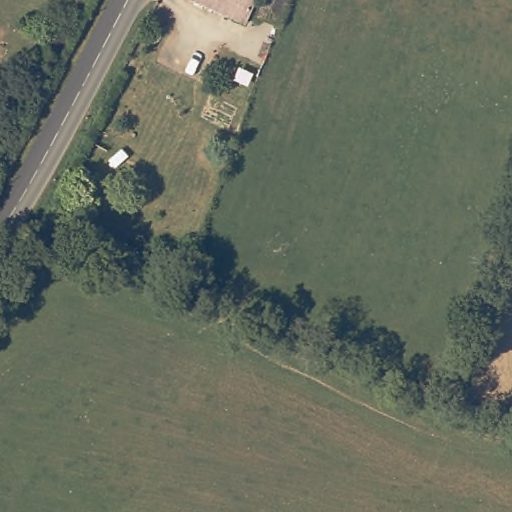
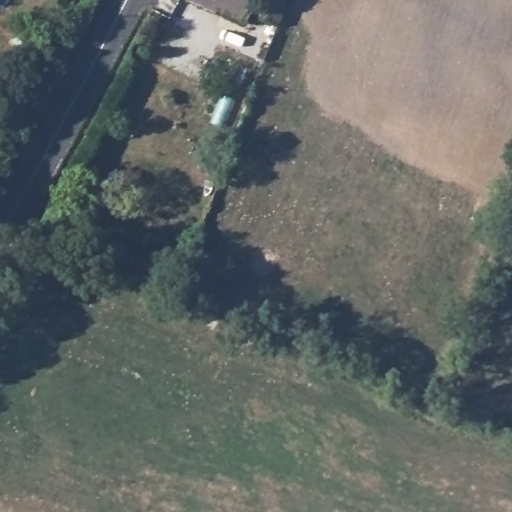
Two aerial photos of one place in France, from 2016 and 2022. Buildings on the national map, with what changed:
unchanged [(255,18),(246,14),(242,20),(194,0),(253,0),(261,3),(262,0),(286,0),(277,23),(257,14),(255,18)]

